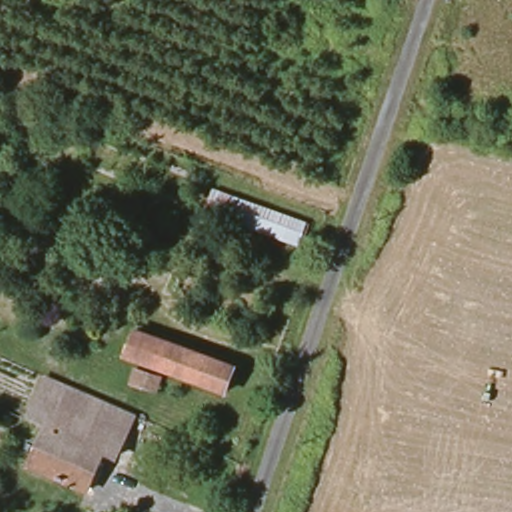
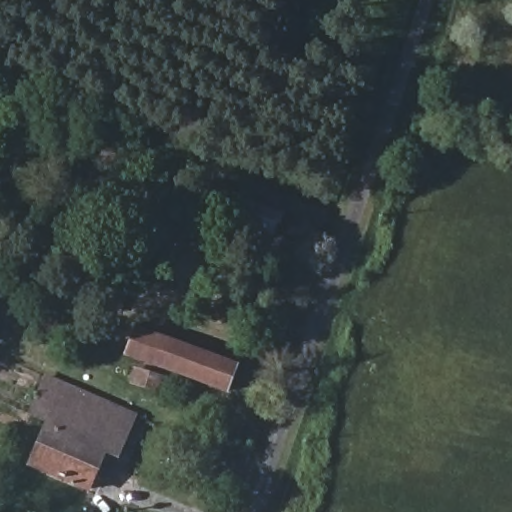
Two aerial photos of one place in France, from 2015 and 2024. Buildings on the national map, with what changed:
unchanged [(218,190),(319,224),(311,247),(211,216),(218,190)]
unchanged [(234,390),(131,354),(141,327),(244,364),(234,390)]
unchanged [(138,382),(143,366),(171,374),(165,390),(138,382)]
unchanged [(103,455),(90,488),(31,464),(66,384),(137,414),(119,461),(103,455)]

